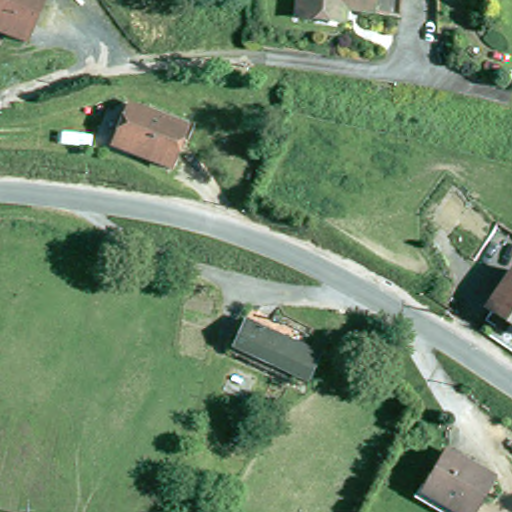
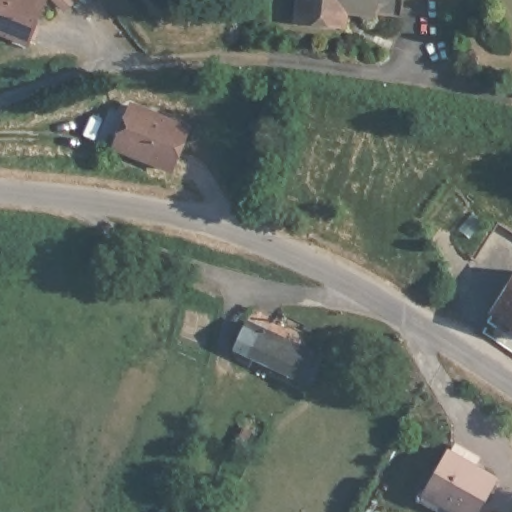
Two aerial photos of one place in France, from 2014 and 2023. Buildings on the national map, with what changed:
unchanged [(25,40),(21,48),(0,38),(0,0),(44,0),(25,40)]
unchanged [(326,26),(293,19),(295,6),(296,0),(372,0),(369,16),(342,12),(340,29),(326,26)]
unchanged [(173,170),(112,147),(132,105),(190,128),(173,170)]
unchanged [(512,281),(512,328),(492,316),(512,281)]
unchanged [(300,386),(229,356),(242,323),(315,353),(300,386)]
unchanged [(444,457),(490,480),(474,512),(449,512),(424,498),(427,492),(444,457)]

